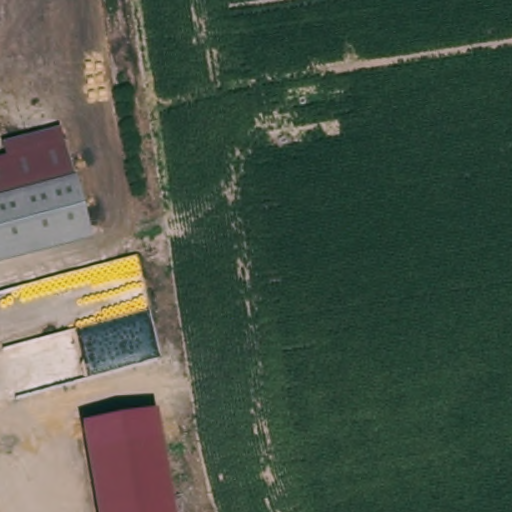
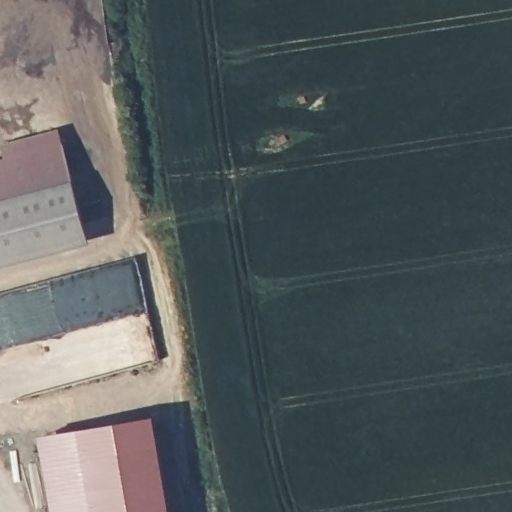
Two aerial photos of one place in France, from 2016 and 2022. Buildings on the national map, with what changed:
unchanged [(66,130),(97,231),(0,261),(0,150),(66,130)]
unchanged [(86,427),(162,416),(166,442),(91,452),(86,427)]
new [(86,427),(91,452),(97,490),(100,512),(55,512),(41,435),(86,427)]
unchanged [(169,466),(176,512),(100,512),(97,490),(91,452),(166,442),(169,466)]

